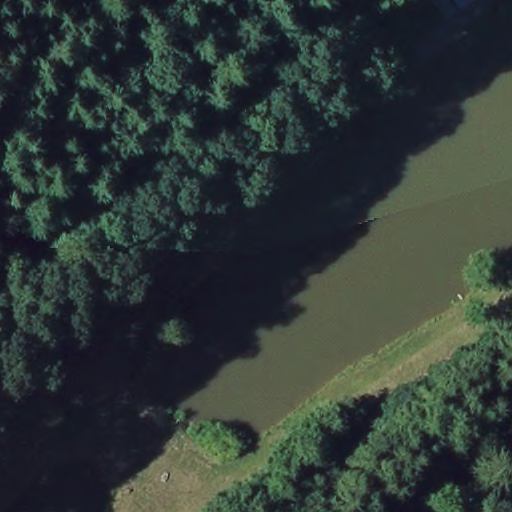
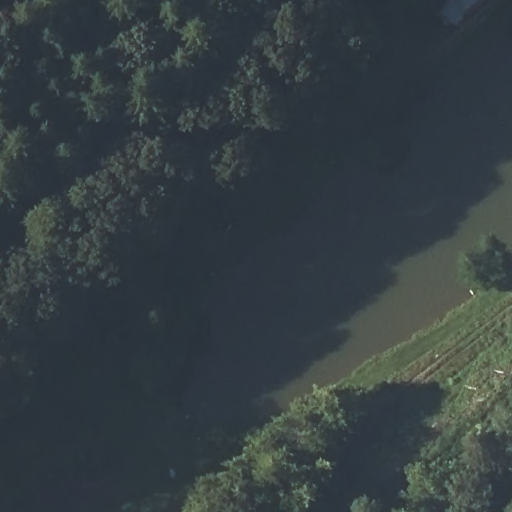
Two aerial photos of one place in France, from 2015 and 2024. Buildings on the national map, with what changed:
unchanged [(487,0),(468,17),(454,0),(487,0)]
unchanged [(392,84),(382,73),(396,61),(405,70),(392,84)]

